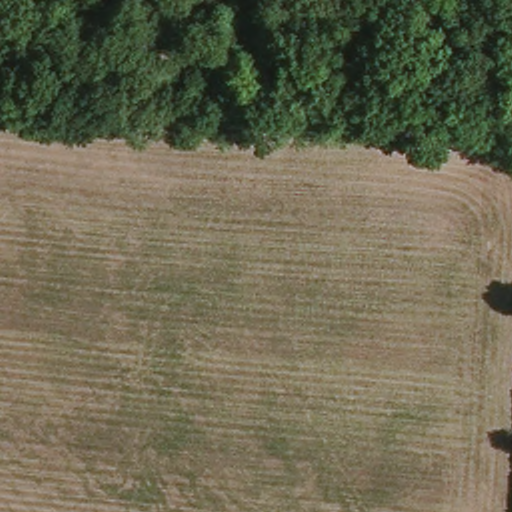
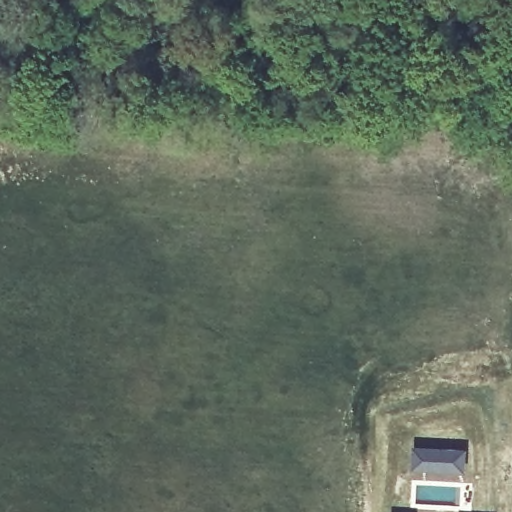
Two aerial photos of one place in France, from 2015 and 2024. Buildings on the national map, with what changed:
new [(412,445),(467,447),(466,473),(411,470),(412,445)]

